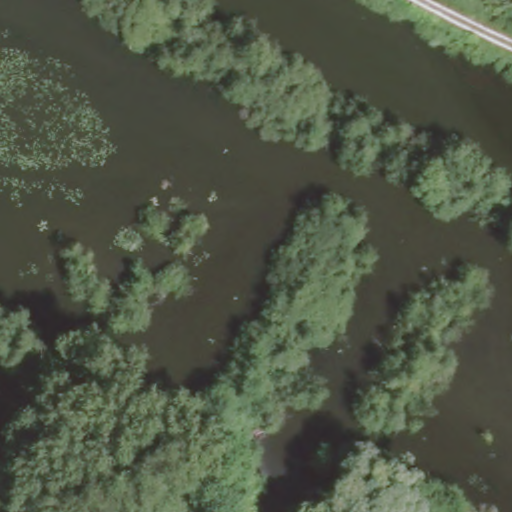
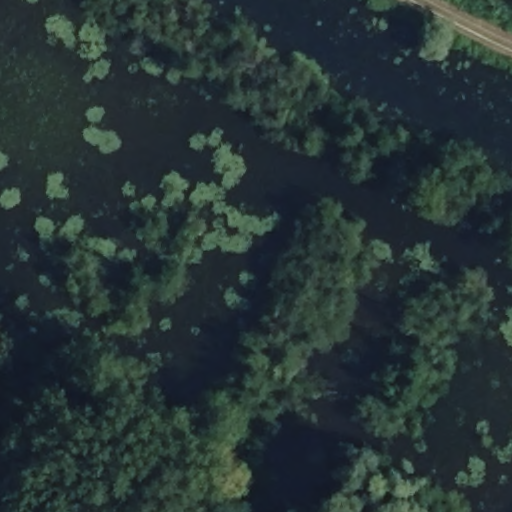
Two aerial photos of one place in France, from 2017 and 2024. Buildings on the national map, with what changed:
unchanged [(0,463),(0,440),(19,454),(26,460),(15,474),(7,469),(0,463)]
unchanged [(145,482),(121,469),(131,452),(154,465),(145,482)]

